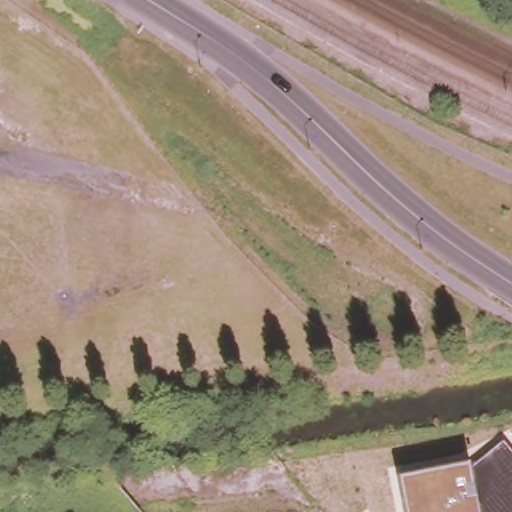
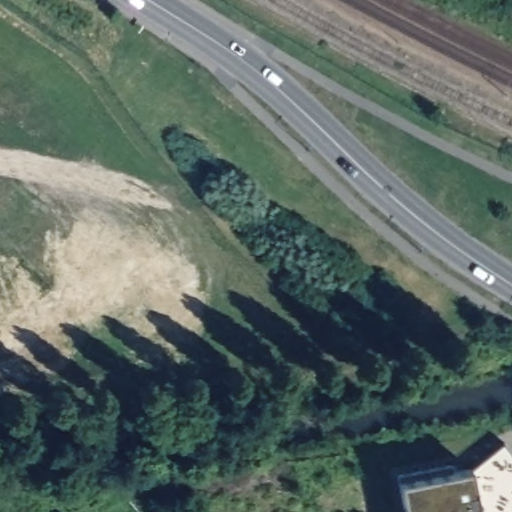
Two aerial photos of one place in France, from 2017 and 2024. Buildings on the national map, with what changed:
unchanged [(503,443),(512,454),(512,512),(480,512),(471,469),(503,443)]
unchanged [(471,469),(480,512),(406,512),(401,483),(471,469)]

